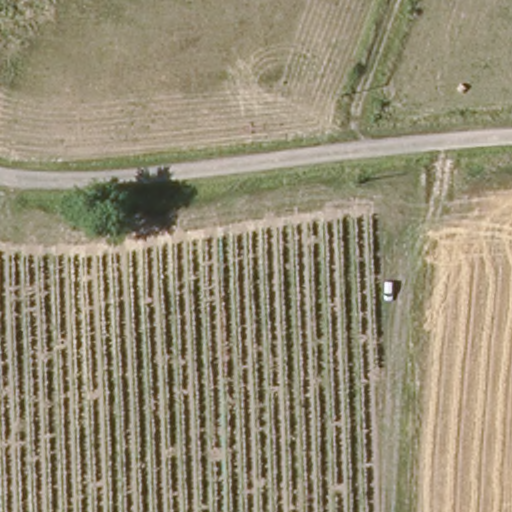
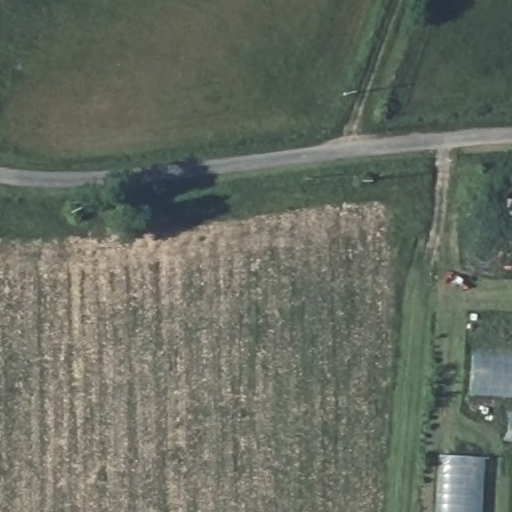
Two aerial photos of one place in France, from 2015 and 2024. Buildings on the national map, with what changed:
new [(505,397),(464,395),(467,352),(512,355),(512,442),(500,442),(505,397)]
new [(481,457),(479,512),(429,512),(432,455),(481,457)]

